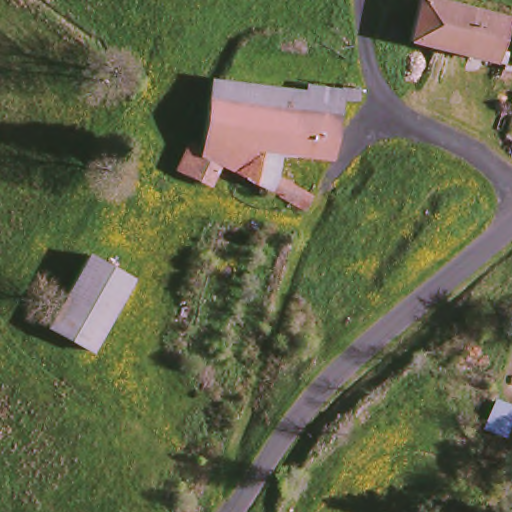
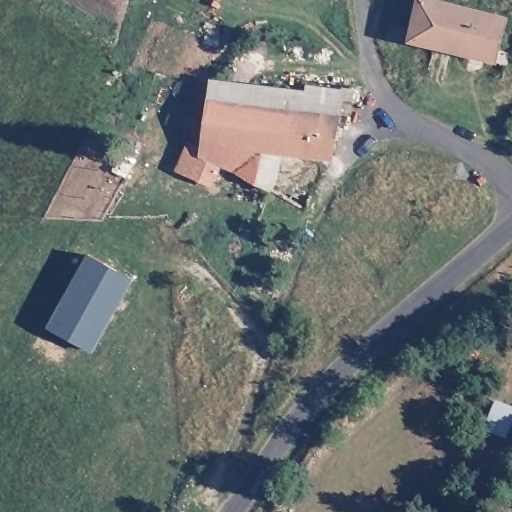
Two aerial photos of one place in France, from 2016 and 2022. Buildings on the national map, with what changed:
unchanged [(498,71),(486,66),(402,44),(412,2),(497,25),(489,55),(501,60),(498,71)]
unchanged [(356,95),(339,93),(340,77),(358,80),(356,95)]
unchanged [(207,93),(208,82),(264,86),(263,105),(294,106),(295,90),(313,91),(309,155),(281,154),(276,174),(311,190),(300,210),(224,167),(208,194),(203,190),(178,174),(191,150),(201,155),(207,93)]
unchanged [(330,156),(309,155),(313,91),(339,93),(330,156)]
unchanged [(125,286),(85,356),(41,330),(83,261),(125,286)]
unchanged [(505,441),(475,430),(490,397),(512,404),(512,422),(505,441)]

